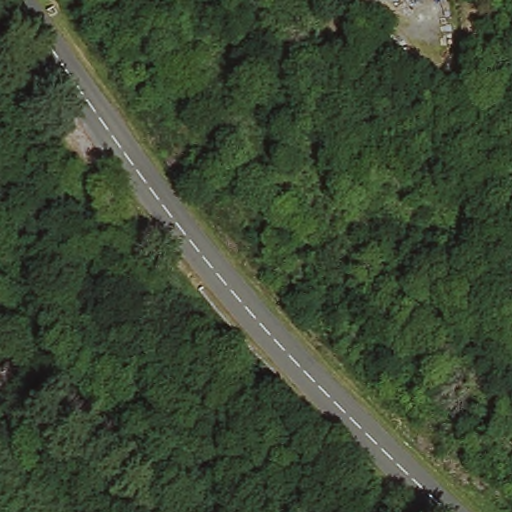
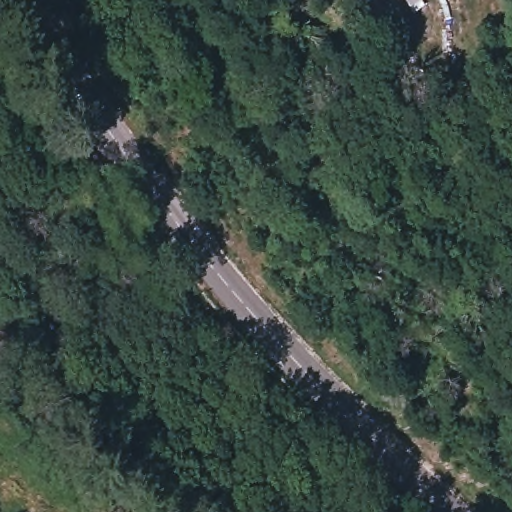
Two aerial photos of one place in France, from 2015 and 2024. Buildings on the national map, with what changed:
unchanged [(408,1),(407,0),(410,0),(408,1)]

